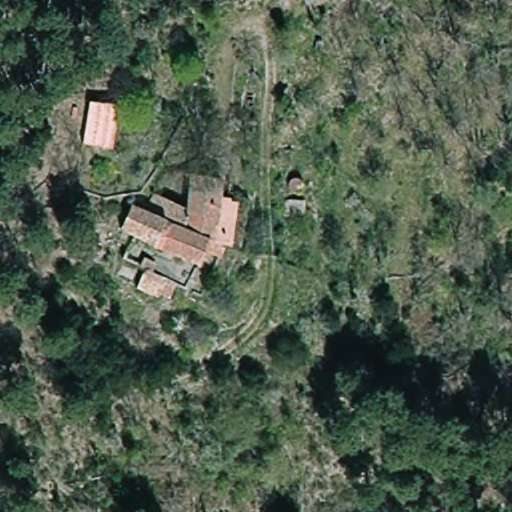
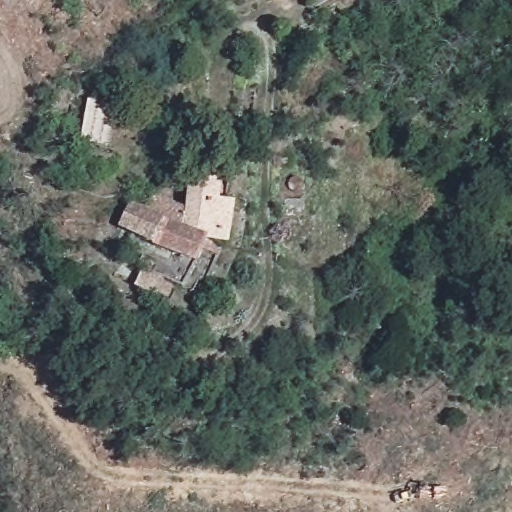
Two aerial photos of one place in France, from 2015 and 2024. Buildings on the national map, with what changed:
unchanged [(305,0),(318,0),(306,5),(305,0)]
unchanged [(82,138),(96,104),(122,114),(108,148),(82,138)]
unchanged [(125,259),(134,239),(120,232),(134,212),(146,217),(159,199),(184,211),(196,182),(262,211),(249,262),(215,249),(209,261),(200,257),(186,288),(173,281),(165,297),(134,284),(142,267),(125,259)]

